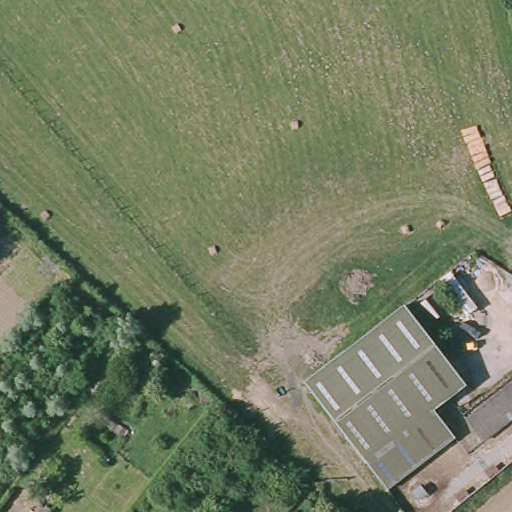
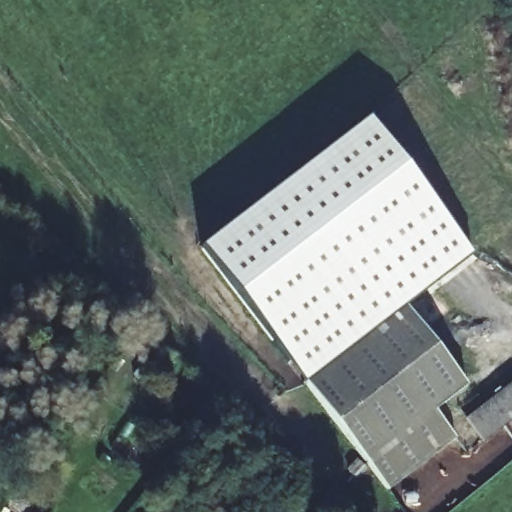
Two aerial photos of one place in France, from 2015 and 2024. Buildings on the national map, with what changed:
new [(304,383),(200,247),(367,119),(471,255),(304,383)]
unchanged [(467,390),(436,417),(457,444),(391,496),(305,388),(326,372),(365,341),(400,314),(404,311),(467,390)]
unchanged [(512,425),(489,444),(471,421),(512,386),(512,425)]

